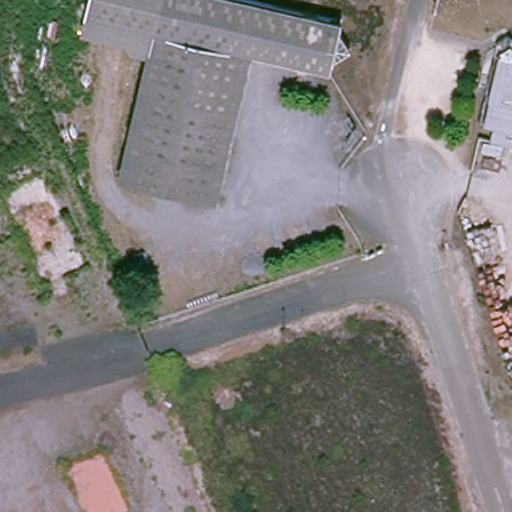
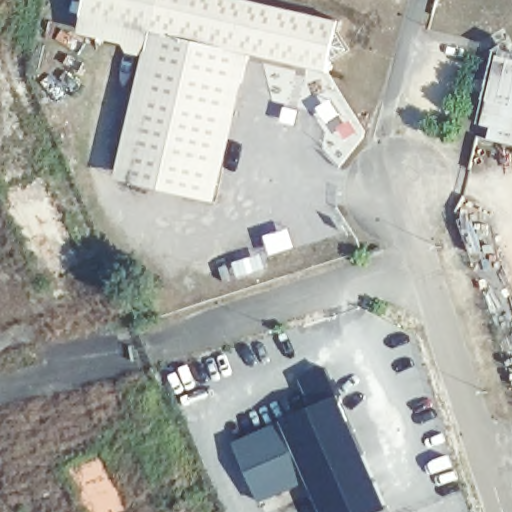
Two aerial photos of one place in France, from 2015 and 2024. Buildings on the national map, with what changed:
unchanged [(322,73),(245,58),(215,203),(123,183),(155,38),(94,23),(99,0),(242,0),(333,21),(322,73)]
unchanged [(512,146),(482,136),(486,124),(477,121),(497,60),(512,65),(512,146)]
new [(368,461),(388,510),(383,512),(319,512),(306,483),(279,418),(337,392),(368,461)]
new [(279,418),(306,483),(257,503),(230,441),(279,418)]

